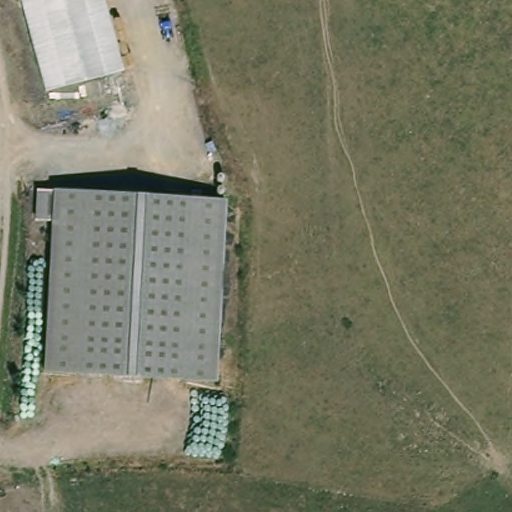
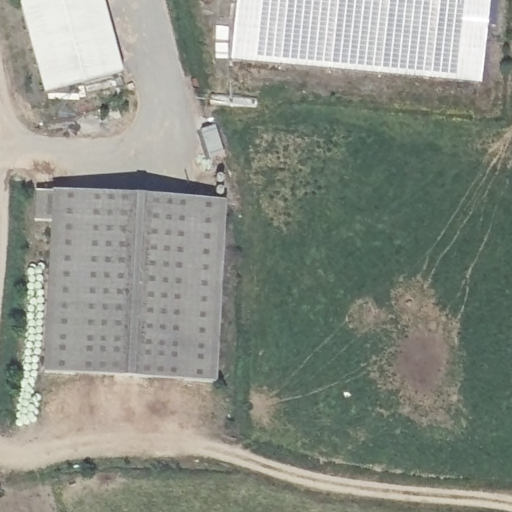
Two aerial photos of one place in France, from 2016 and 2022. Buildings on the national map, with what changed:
unchanged [(37,91),(19,0),(101,0),(116,76),(37,91)]
new [(236,0),(485,0),(478,83),(231,60),(236,0)]
unchanged [(35,224),(35,191),(55,191),(61,192),(227,202),(216,382),(44,372),(53,225),(35,224)]

